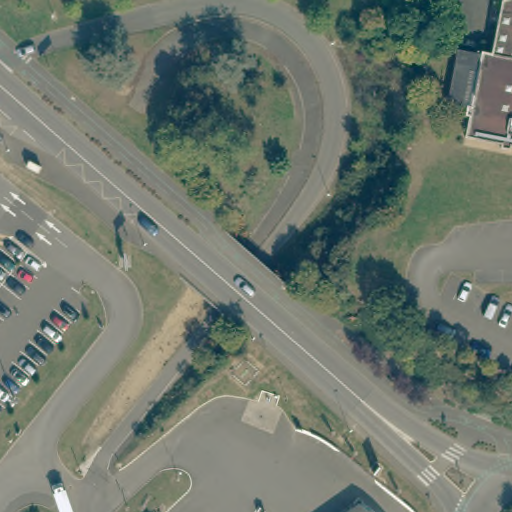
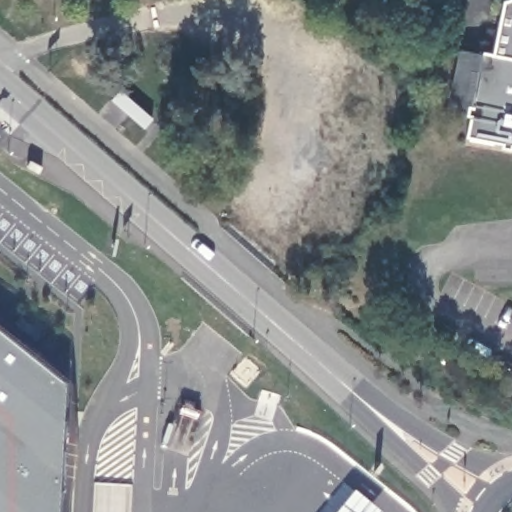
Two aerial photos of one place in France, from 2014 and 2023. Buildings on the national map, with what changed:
unchanged [(506,140),(471,133),(475,111),(472,109),(473,100),(477,101),(490,46),(496,47),(508,0),(512,0),(512,145),(505,144),(506,140)]
new [(65,387),(58,512),(0,512),(0,335),(65,387)]
unchanged [(360,499),(376,512),(342,512),(360,499)]

